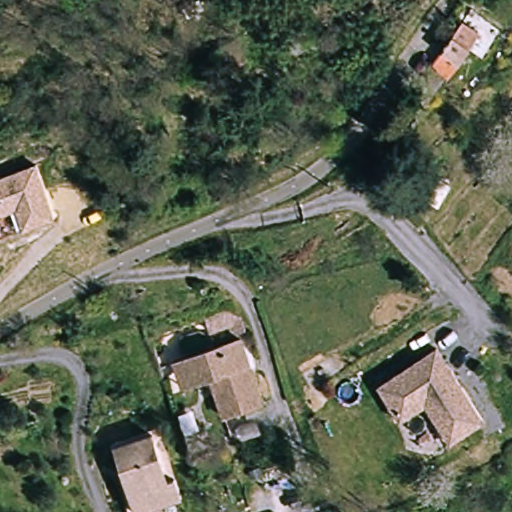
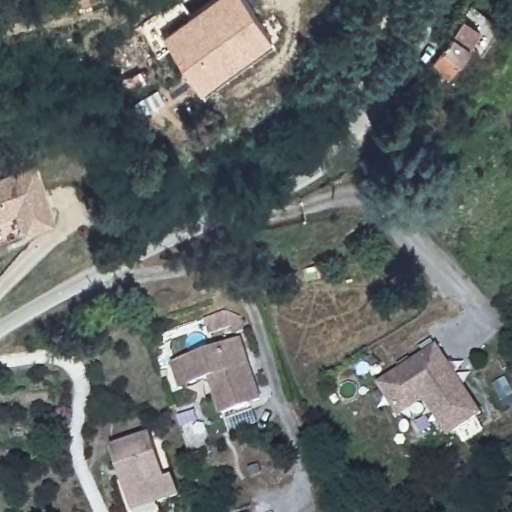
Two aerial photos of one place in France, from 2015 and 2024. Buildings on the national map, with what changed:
new [(159,56),(138,25),(159,10),(164,16),(182,2),(191,15),(210,0),(245,0),(271,35),(275,40),(204,91),(201,87),(172,47),(159,56)]
unchanged [(442,52),(440,49),(480,0),(484,0),(495,9),(452,60),(427,90),(418,81),(442,52)]
demolished [(221,38),(241,28),(253,53),(234,63),(221,38)]
unchanged [(35,164),(55,215),(21,227),(6,174),(35,164)]
unchanged [(6,174),(21,227),(0,235),(0,176),(6,174)]
unchanged [(264,400),(228,413),(215,374),(195,380),(185,384),(176,359),(186,356),(242,336),(264,400)]
unchanged [(441,347),(484,419),(450,440),(427,400),(400,416),(380,382),(441,347)]
unchanged [(121,443),(164,428),(185,489),(164,497),(168,512),(144,512),(142,504),(121,443)]

